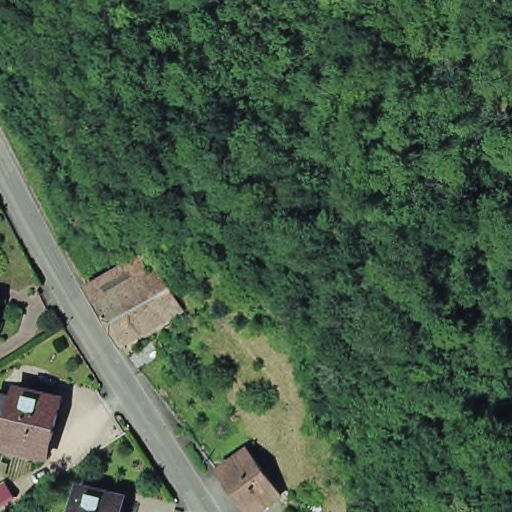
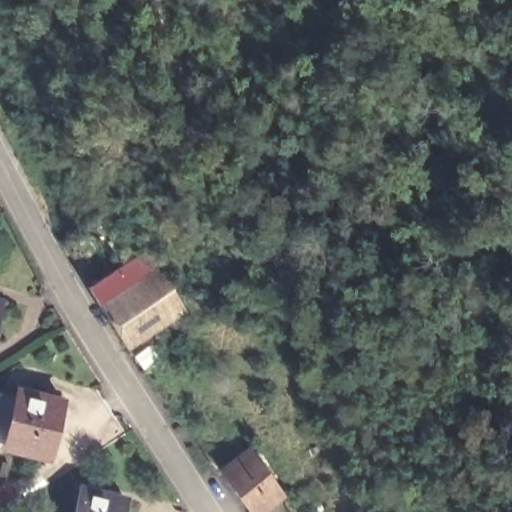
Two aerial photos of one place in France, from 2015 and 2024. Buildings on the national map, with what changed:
unchanged [(89,288),(133,261),(146,278),(162,268),(188,309),(125,347),(89,288)]
unchanged [(142,372),(131,356),(153,340),(163,356),(162,357),(142,372)]
unchanged [(0,396),(16,399),(18,392),(63,402),(49,458),(4,447),(0,447),(0,396)]
unchanged [(247,452),(278,496),(257,512),(246,512),(218,475),(247,452)]
unchanged [(81,484),(124,496),(120,512),(73,512),(81,484)]
unchanged [(0,491),(4,488),(12,500),(0,507),(0,491)]

